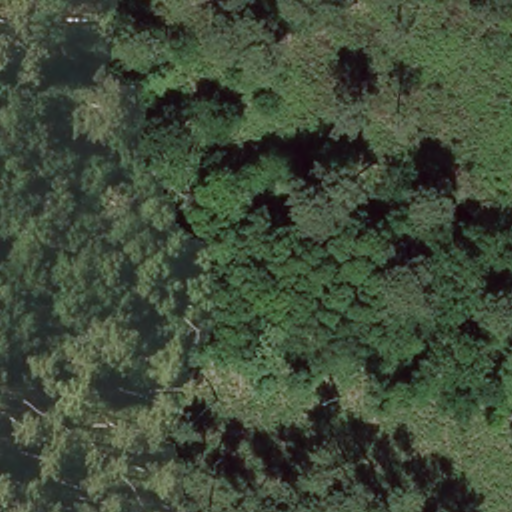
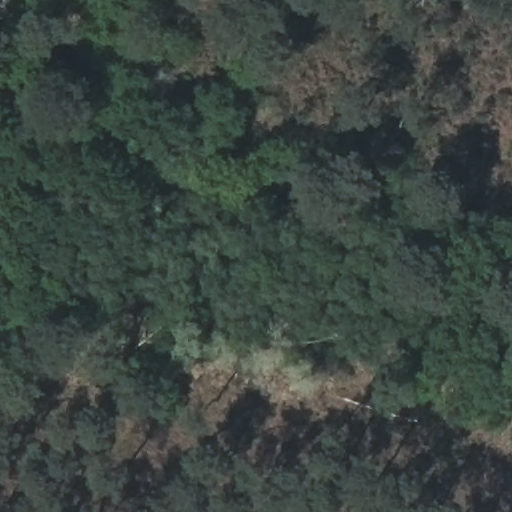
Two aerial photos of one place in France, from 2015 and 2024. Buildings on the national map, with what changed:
[]

